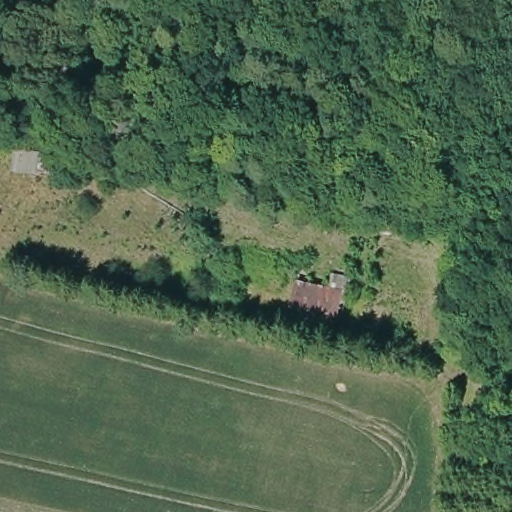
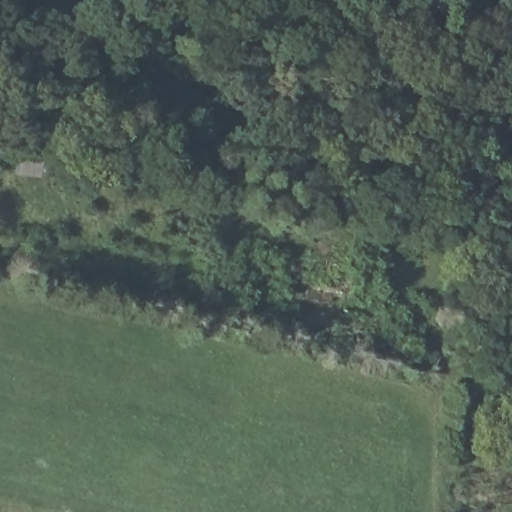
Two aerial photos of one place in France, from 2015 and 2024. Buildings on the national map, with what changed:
unchanged [(13,150),(51,155),(48,182),(9,175),(13,150)]
unchanged [(287,311),(296,285),(347,294),(338,322),(287,311)]

